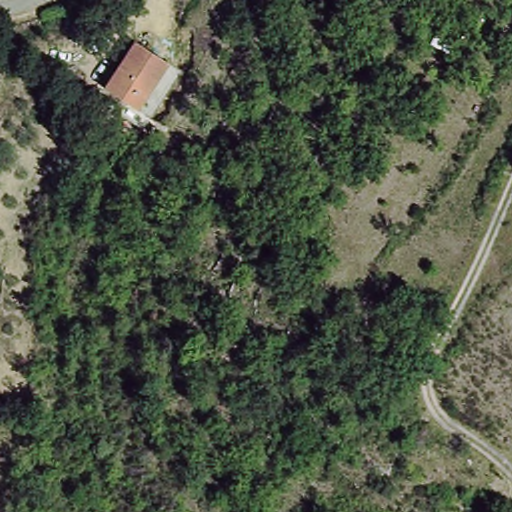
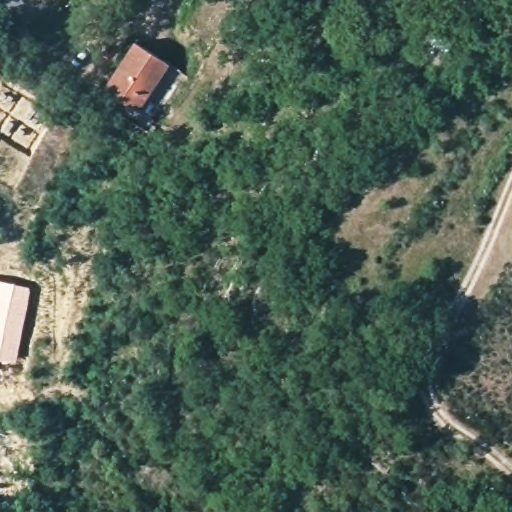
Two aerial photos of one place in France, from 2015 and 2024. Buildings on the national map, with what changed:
unchanged [(169,68),(138,119),(106,97),(138,49),(169,68)]
new [(17,362),(0,359),(0,279),(31,285),(17,362)]

